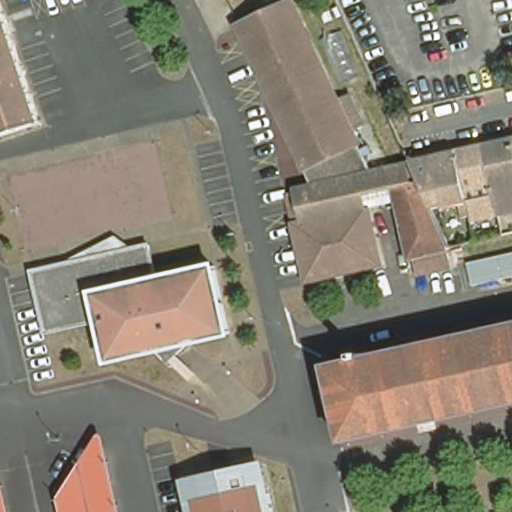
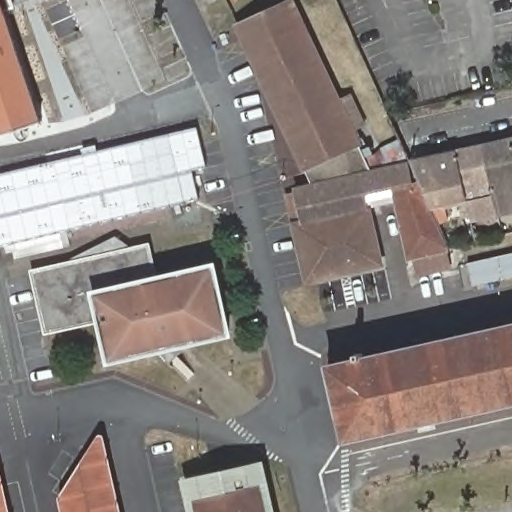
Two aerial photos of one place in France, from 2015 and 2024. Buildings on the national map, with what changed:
unchanged [(427,211),(445,251),(445,252),(442,253),(447,271),(412,278),(408,261),(406,261),(393,206),(361,213),(361,214),(362,214),(375,268),(303,284),(291,230),(283,201),(292,199),(291,193),(307,189),(232,31),(286,6),(333,105),(347,98),(362,131),(348,137),(367,175),(406,165),(427,211)]
unchanged [(0,139),(0,17),(36,128),(0,139)]
new [(192,171),(199,200),(0,247),(0,174),(83,155),(82,149),(97,145),(98,151),(197,127),(207,167),(192,171)]
unchanged [(512,141),(512,165),(507,143),(512,141)]
unchanged [(512,165),(512,206),(495,210),(492,201),(477,149),(507,143),(512,165)]
unchanged [(492,201),(465,207),(463,202),(451,155),(477,149),(492,201)]
unchanged [(451,155),(463,202),(427,211),(406,165),(451,155)]
unchanged [(460,219),(457,209),(465,207),(467,217),(460,219)]
unchanged [(144,243),(152,278),(209,265),(225,332),(106,359),(96,318),(42,330),(27,269),(144,243)]
unchanged [(512,275),(463,286),(458,263),(512,251),(512,275)]
unchanged [(350,355),(357,353),(358,358),(512,323),(512,402),(340,441),(323,366),(352,360),(350,355)]
unchanged [(59,503),(102,437),(119,512),(61,512),(59,503)]
unchanged [(184,500),(191,498),(187,483),(241,471),(244,486),(251,485),(257,512),(187,512),(184,500)]
unchanged [(8,512),(0,512),(0,478),(8,512)]

